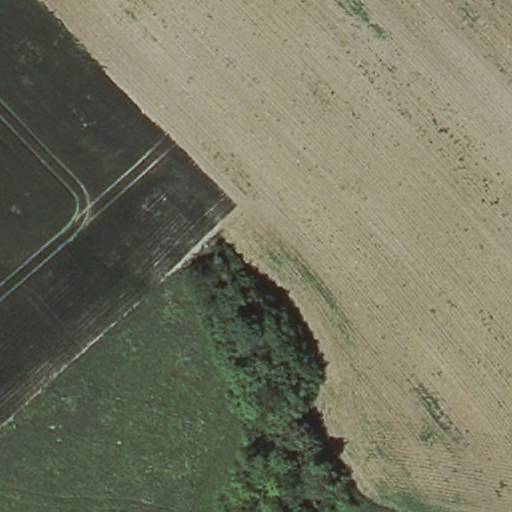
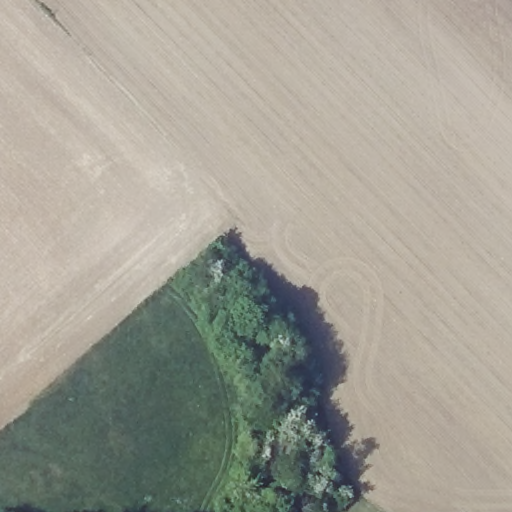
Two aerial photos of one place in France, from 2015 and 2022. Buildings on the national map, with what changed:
unchanged [(317,504),(317,507),(309,512),(300,512),(298,511),(297,512),(283,512),(277,505),(290,486),(302,486),(317,504)]

